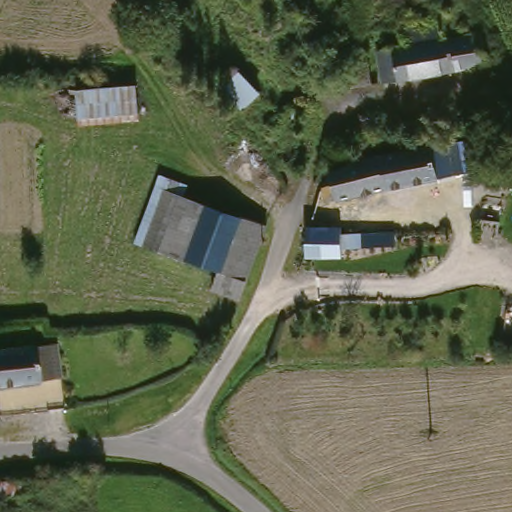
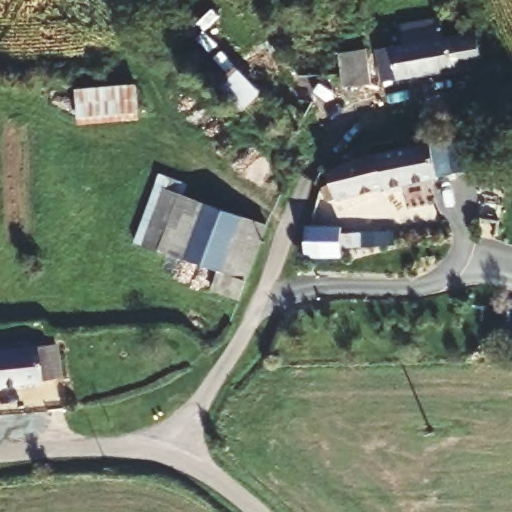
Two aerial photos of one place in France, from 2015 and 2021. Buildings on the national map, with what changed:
unchanged [(412,41),(409,21),(448,14),(451,34),(456,33),(484,28),(490,53),(491,60),(390,78),(384,46),(412,41)]
unchanged [(345,50),(373,47),(378,79),(350,84),(348,71),(345,50)]
unchanged [(221,78),(237,64),(260,90),(245,104),(221,78)]
unchanged [(85,119),(82,92),(142,87),(145,114),(85,119)]
unchanged [(282,103),(295,114),(270,144),(258,131),(282,103)]
unchanged [(463,170),(445,173),(391,184),(332,198),(329,185),(339,180),(336,169),(364,154),(438,139),(438,140),(458,138),(463,169),(463,170)]
unchanged [(194,181),(189,192),(170,249),(142,239),(166,171),(194,181)]
unchanged [(246,212),(225,268),(170,249),(189,192),(246,212)]
unchanged [(273,221),(246,296),(219,286),(225,268),(246,212),(273,221)]
unchanged [(339,230),(392,228),(393,241),(339,244),(339,252),(304,252),(304,224),(305,222),(339,223),(339,230)]
unchanged [(0,383),(0,347),(37,342),(37,343),(57,341),(62,374),(42,377),(0,383)]

